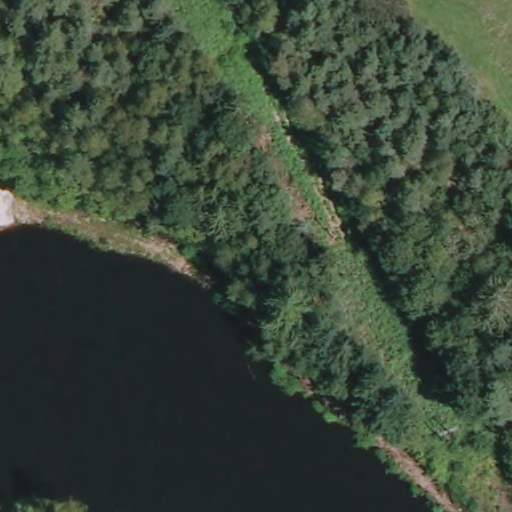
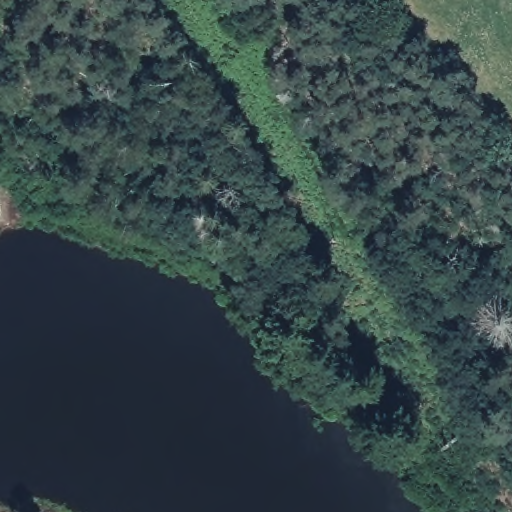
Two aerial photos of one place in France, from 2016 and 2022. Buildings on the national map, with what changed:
[]

